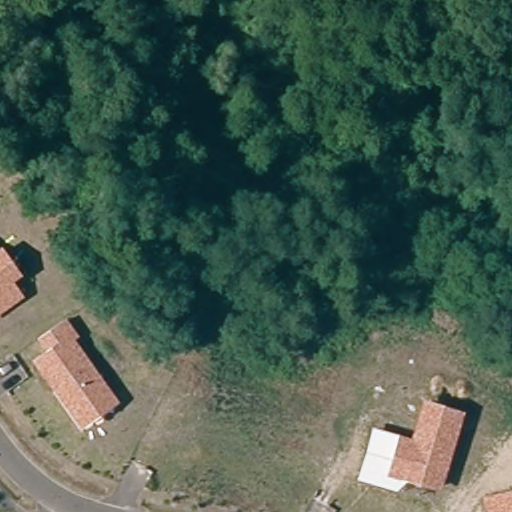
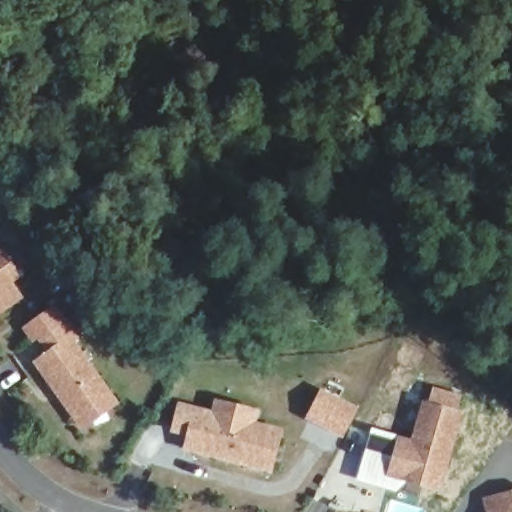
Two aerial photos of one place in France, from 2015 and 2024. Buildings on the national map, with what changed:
unchanged [(0,247),(21,275),(13,282),(24,298),(0,315),(0,247)]
unchanged [(31,361),(45,351),(36,340),(66,319),(78,338),(74,340),(119,403),(81,429),(31,361)]
new [(306,419),(321,389),(359,408),(344,439),(306,419)]
new [(174,422),(180,398),(196,402),(214,406),(217,394),(255,404),(252,416),(280,423),(270,462),(196,443),(186,440),(188,433),(189,426),(174,422)]
unchanged [(440,494),(405,484),(396,493),(357,483),(371,428),(410,438),(421,401),(463,414),(440,494)]
unchanged [(482,497),(512,490),(512,512),(485,512),(482,497)]

